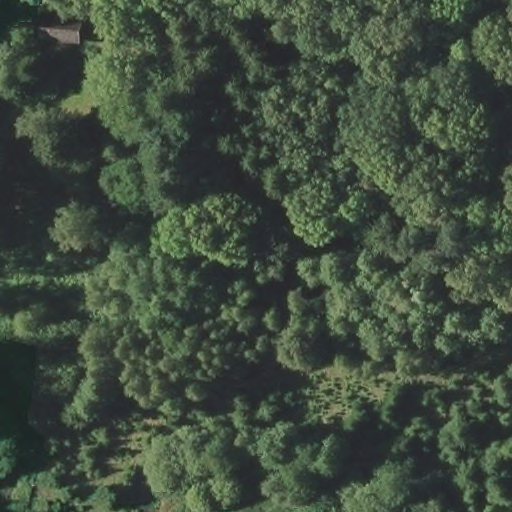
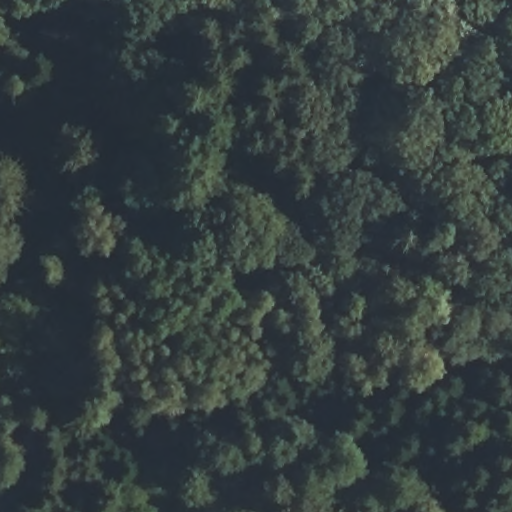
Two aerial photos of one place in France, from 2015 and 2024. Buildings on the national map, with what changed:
unchanged [(31,41),(33,15),(75,18),(70,45),(31,41)]

